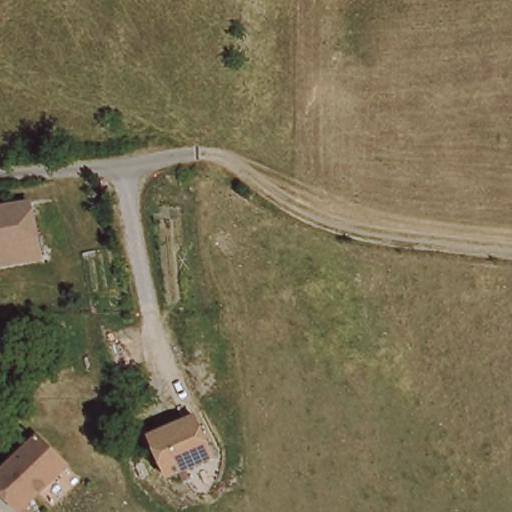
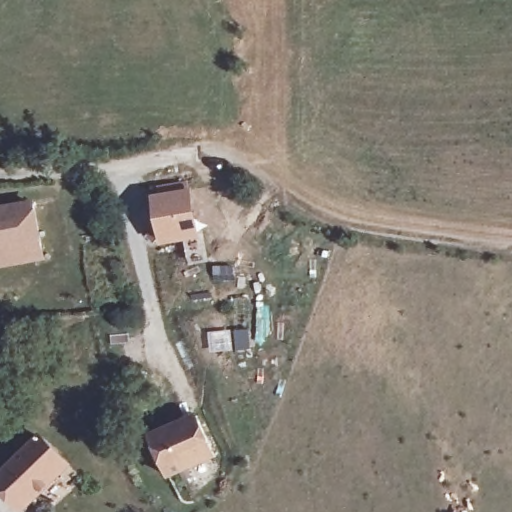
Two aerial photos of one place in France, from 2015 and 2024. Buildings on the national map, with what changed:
new [(152,196),(190,190),(197,239),(161,245),(152,196)]
unchanged [(0,267),(0,210),(34,204),(42,249),(44,259),(0,267)]
unchanged [(219,462),(170,482),(151,435),(200,414),(219,462)]
unchanged [(25,498),(17,506),(0,490),(0,477),(40,437),(63,460),(69,465),(59,475),(45,489),(30,503),(25,498)]

